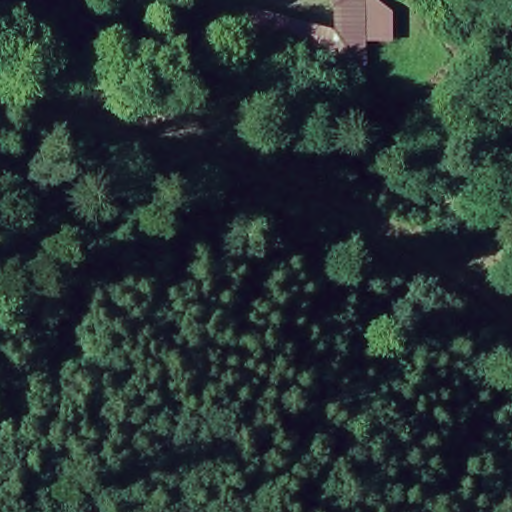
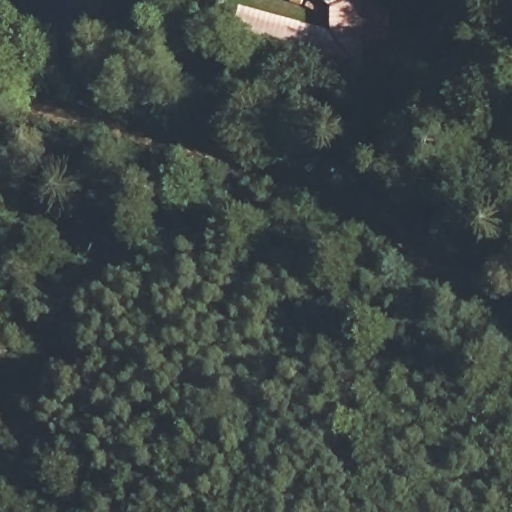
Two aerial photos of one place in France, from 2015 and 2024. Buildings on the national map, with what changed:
unchanged [(390,11),(388,53),(363,51),(356,77),(235,50),(245,11),(327,33),(329,8),(319,0),(365,0),(375,8),(390,11)]

